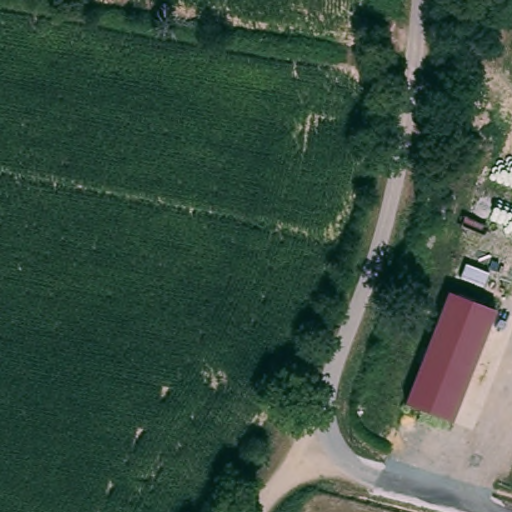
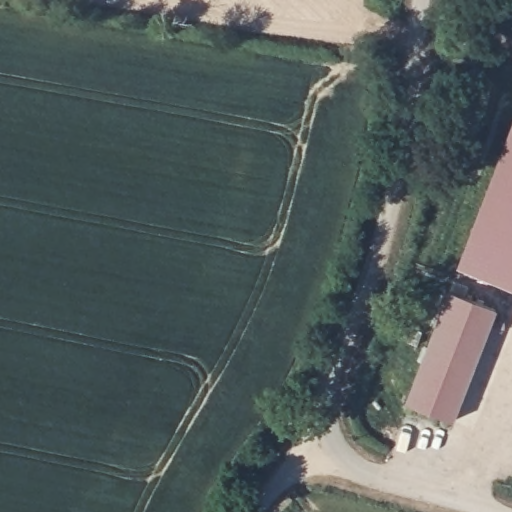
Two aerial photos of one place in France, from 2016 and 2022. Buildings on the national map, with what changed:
new [(512,125),(512,288),(457,267),(512,125)]
unchanged [(495,311),(451,423),(402,401),(446,291),(495,311)]

